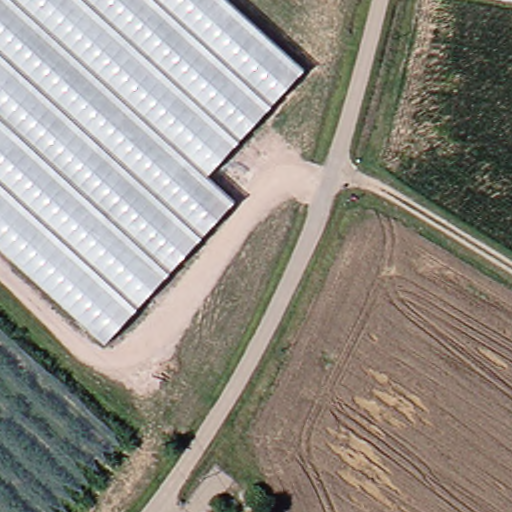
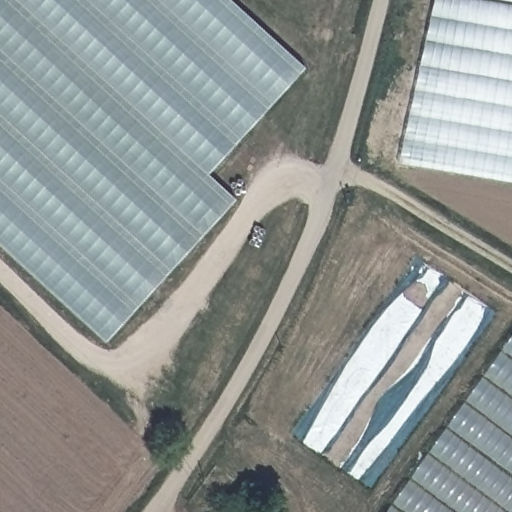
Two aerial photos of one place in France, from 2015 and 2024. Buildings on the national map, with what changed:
unchanged [(305,69),(264,115),(208,176),(236,201),(147,298),(106,343),(0,247),(0,0),(230,0),(305,69)]
new [(512,5),(512,184),(399,165),(434,0),(480,0),(512,5)]
new [(512,1),(507,0),(512,0),(512,1)]
new [(512,512),(387,512),(512,336),(512,512)]

